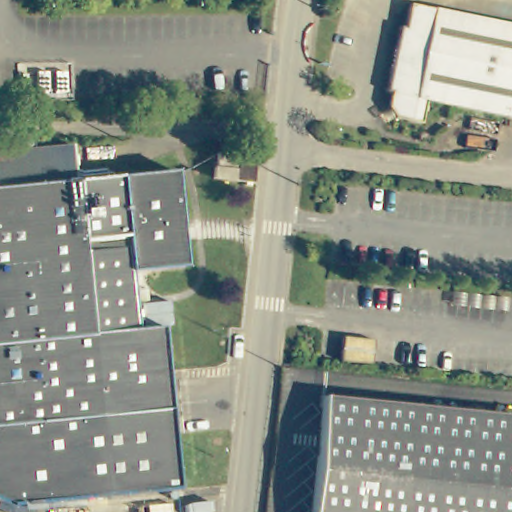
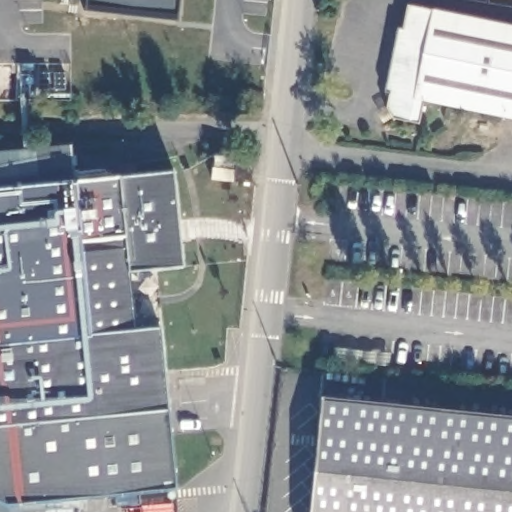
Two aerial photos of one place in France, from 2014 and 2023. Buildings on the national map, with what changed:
new [(80,10),(81,0),(176,0),(174,21),(80,10)]
unchanged [(512,139),(419,121),(414,145),(376,138),(379,114),(376,111),(387,46),(393,48),(400,3),(512,25),(512,139)]
unchanged [(32,152),(32,150),(67,146),(70,182),(172,171),(181,265),(126,270),(134,329),(157,328),(161,375),(150,376),(97,382),(92,334),(56,338),(27,341),(0,344),(0,154),(32,152)]
unchanged [(243,165),(240,181),(220,178),(221,161),(243,165)]
unchanged [(27,341),(56,338),(92,334),(97,382),(150,376),(161,375),(169,486),(73,495),(0,500),(0,344),(27,341)]
unchanged [(325,392),(512,410),(512,512),(314,512),(325,392)]

